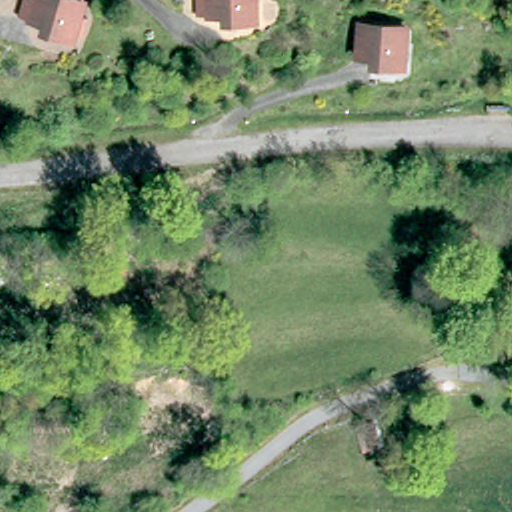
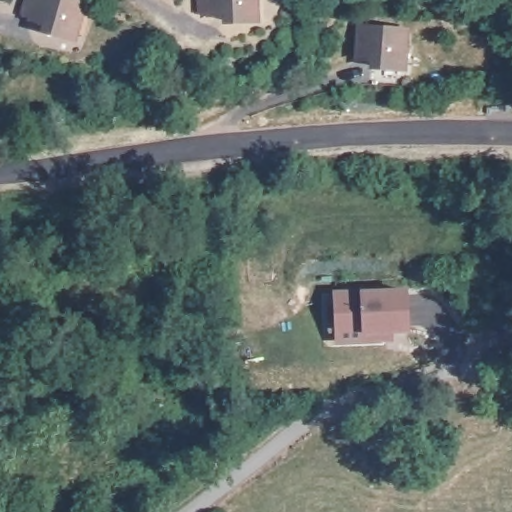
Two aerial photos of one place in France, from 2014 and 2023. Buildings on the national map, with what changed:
unchanged [(45,24),(47,17),(30,12),(34,0),(86,0),(75,33),(45,24)]
unchanged [(223,19),(223,12),(204,12),(203,0),(253,0),(253,17),(223,19)]
unchanged [(396,67),(365,65),(365,57),(348,56),(351,27),(368,27),(399,29),(396,67)]
new [(335,343),(333,290),(359,289),(407,287),(409,332),(393,332),(392,340),(335,343)]

